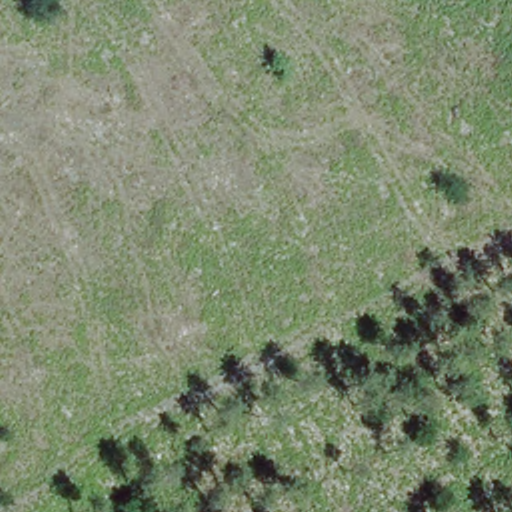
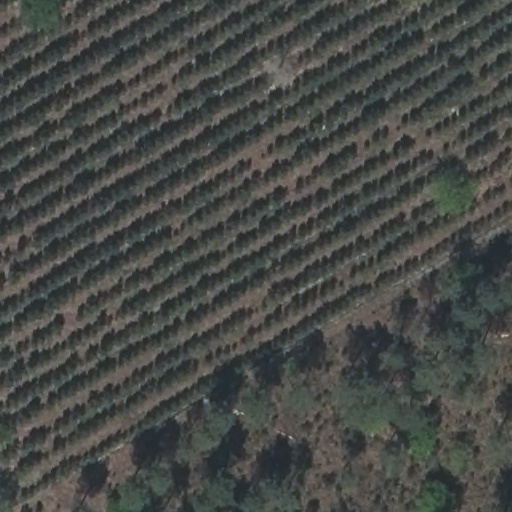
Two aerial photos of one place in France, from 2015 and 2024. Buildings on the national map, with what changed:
[]

